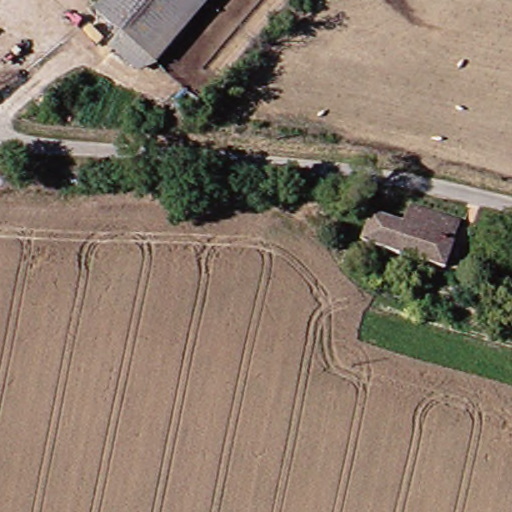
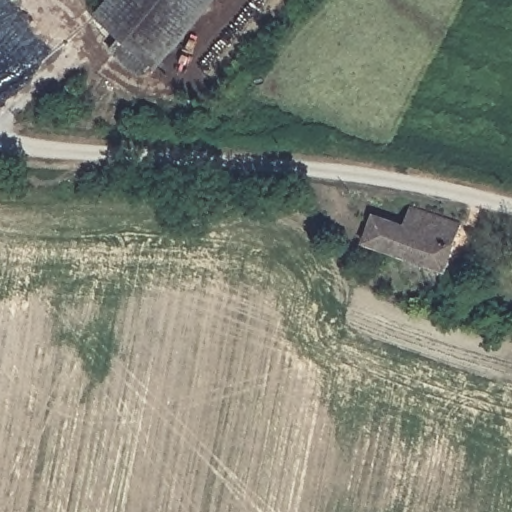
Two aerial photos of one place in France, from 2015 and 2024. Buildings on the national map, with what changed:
unchanged [(132,37),(109,19),(124,0),(226,0),(170,66),(152,72),(123,48),(132,37)]
unchanged [(457,270),(380,237),(390,209),(415,219),(419,206),(471,224),(457,270)]

